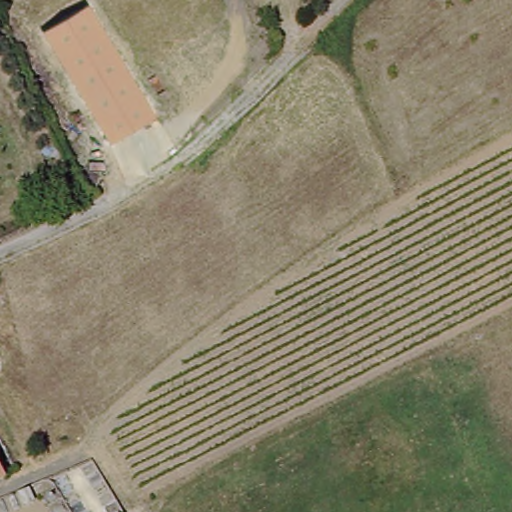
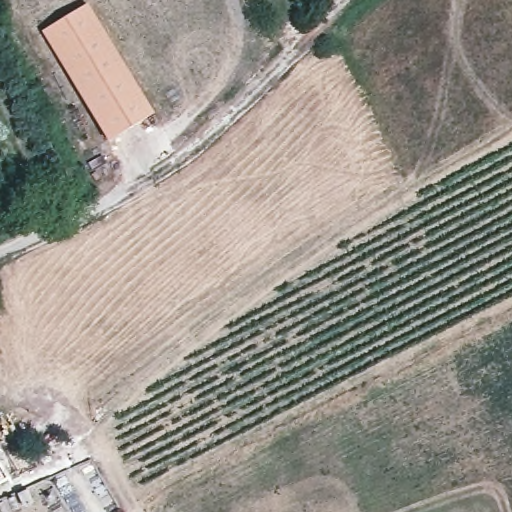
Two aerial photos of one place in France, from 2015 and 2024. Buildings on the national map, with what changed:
unchanged [(151,119),(107,145),(43,35),(87,9),(151,119)]
unchanged [(0,487),(0,473),(7,484),(0,487)]

